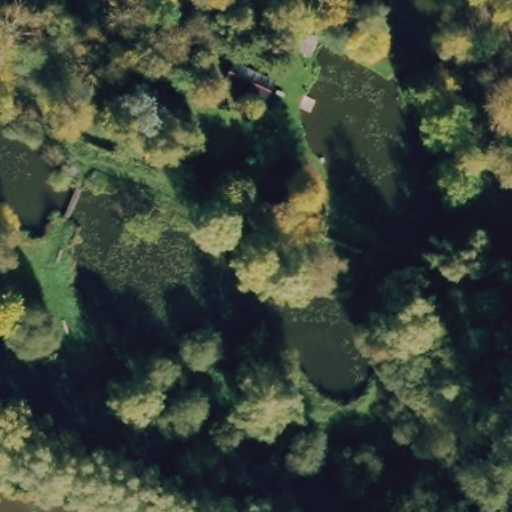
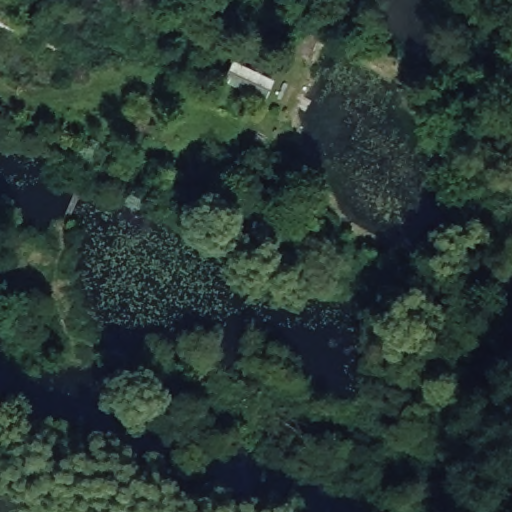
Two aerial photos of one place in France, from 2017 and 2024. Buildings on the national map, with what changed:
unchanged [(265,101),(219,86),(229,57),(273,74),(265,101)]

